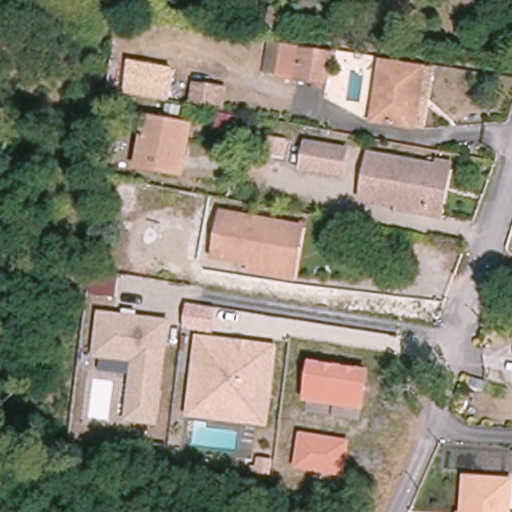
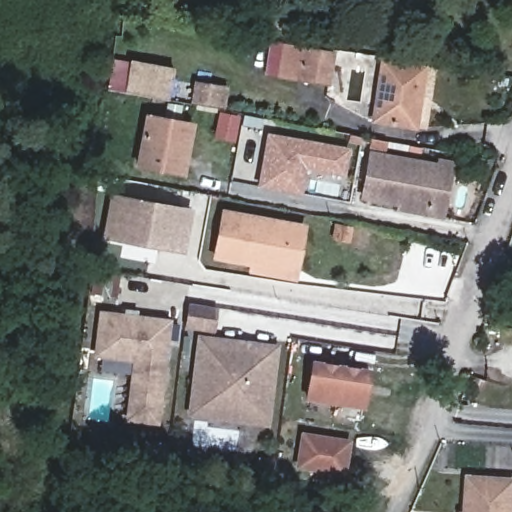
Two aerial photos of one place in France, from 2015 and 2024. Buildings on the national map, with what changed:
unchanged [(282,32),(268,30),(271,5),(286,8),(282,32)]
unchanged [(334,53),(329,83),(299,79),(304,49),(334,53)]
unchanged [(174,68),(173,74),(227,85),(224,109),(124,92),(128,60),(174,68)]
unchanged [(425,68),(416,125),(376,119),(384,62),(425,68)]
unchanged [(193,124),(184,173),(140,165),(149,116),(193,124)]
new [(301,194),(258,187),(268,133),(310,140),(306,165),(301,194)]
unchanged [(346,172),(306,165),(310,140),(350,147),(346,172)]
unchanged [(397,199),(362,194),(370,150),(438,163),(431,205),(397,199)]
unchanged [(444,215),(396,207),(397,199),(431,205),(438,163),(453,165),(444,215)]
new [(104,238),(112,193),(194,207),(186,253),(104,238)]
unchanged [(297,226),(290,269),(217,255),(225,213),(297,226)]
unchanged [(215,330),(182,326),(186,299),(217,304),(215,330)]
unchanged [(159,424),(124,419),(131,362),(94,357),(100,309),(169,318),(159,424)]
unchanged [(268,424),(186,415),(196,332),(278,342),(268,424)]
unchanged [(365,409),(307,399),(312,359),(372,368),(365,409)]
unchanged [(347,475),(294,468),(300,431),(352,439),(347,475)]
unchanged [(467,477),(512,480),(512,503),(511,512),(465,512),(467,477)]

